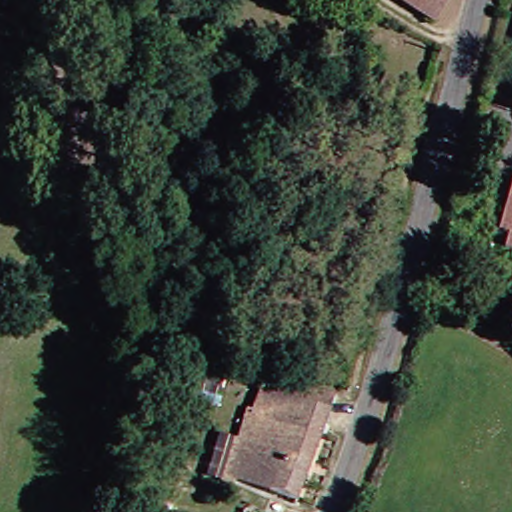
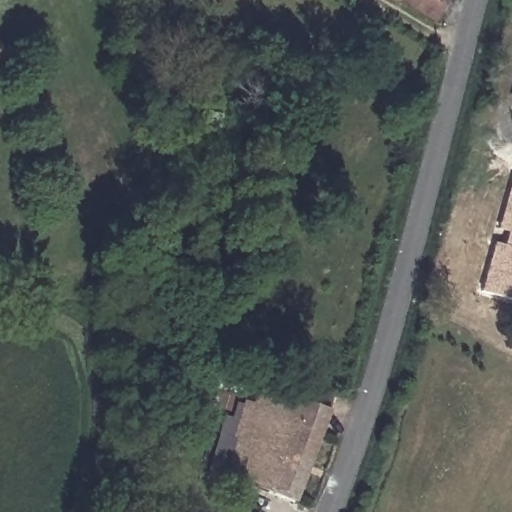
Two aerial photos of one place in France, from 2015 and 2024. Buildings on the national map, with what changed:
unchanged [(394,1),(392,0),(395,0),(394,1)]
unchanged [(394,1),(395,0),(438,0),(426,24),(394,1)]
unchanged [(512,96),(512,111),(508,110),(512,96)]
unchanged [(512,255),(502,252),(505,239),(492,234),(500,204),(505,184),(512,186),(512,255)]
new [(491,244),(503,248),(502,252),(512,255),(512,301),(479,291),(491,244)]
unchanged [(229,435),(239,405),(246,408),(247,401),(237,396),(240,386),(252,390),(293,398),(298,386),(321,393),(319,407),(289,500),(223,480),(212,476),(222,438),(228,437),(229,435)]

